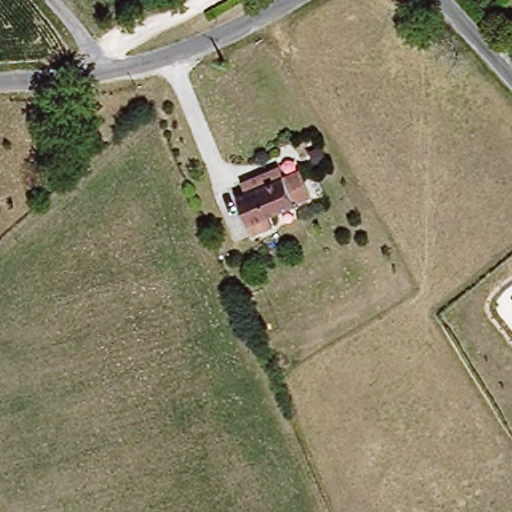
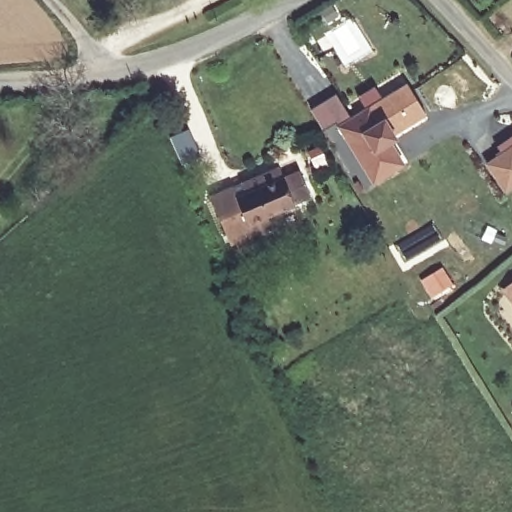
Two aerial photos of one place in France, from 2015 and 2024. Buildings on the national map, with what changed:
new [(427,116),(392,138),(409,165),(374,186),(336,127),(407,84),(427,116)]
new [(512,151),(512,191),(511,192),(492,165),(512,151)]
unchanged [(248,196),(244,186),(282,170),(286,181),(302,174),(313,200),(296,208),(269,220),(274,230),(254,239),(237,201),(248,196)]
new [(234,249),(211,198),(232,188),(237,201),(254,239),(234,249)]

